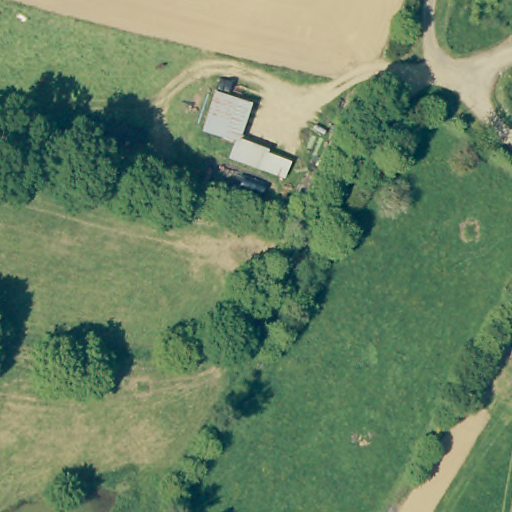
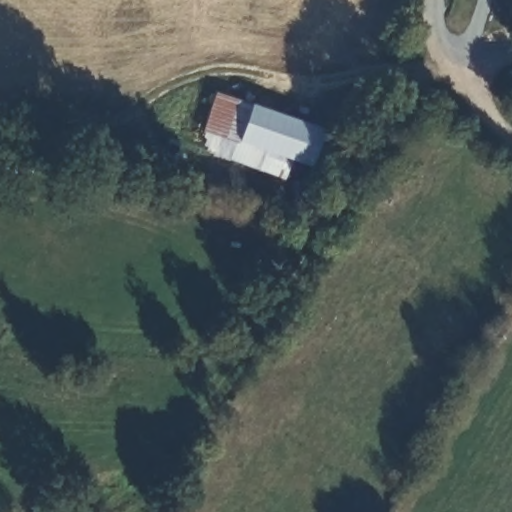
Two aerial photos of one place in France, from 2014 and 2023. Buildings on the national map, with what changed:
unchanged [(215,90),(252,103),(240,138),(269,149),(267,154),(292,162),(284,180),(229,159),(235,141),(202,132),(215,90)]
new [(315,169),(292,162),(267,154),(269,149),(240,138),(252,103),(326,129),(315,169)]

